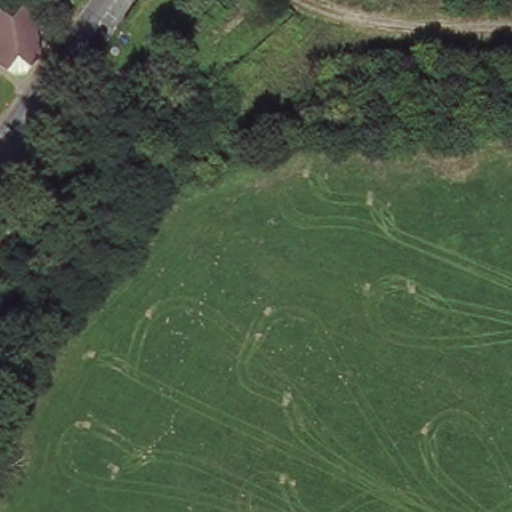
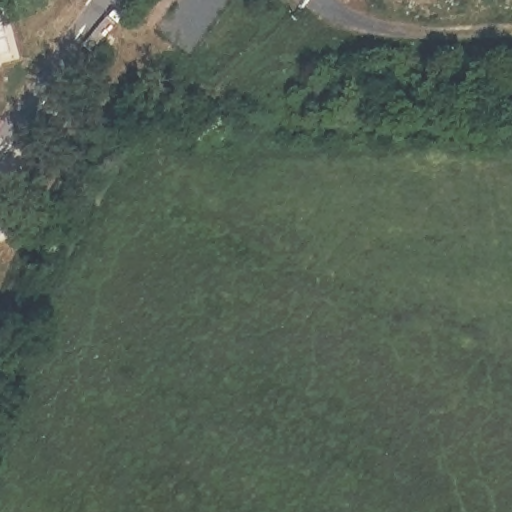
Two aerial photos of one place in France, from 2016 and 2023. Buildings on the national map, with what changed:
unchanged [(3,0),(17,0),(32,13),(39,55),(30,71),(12,77),(0,68),(0,1),(3,0)]

